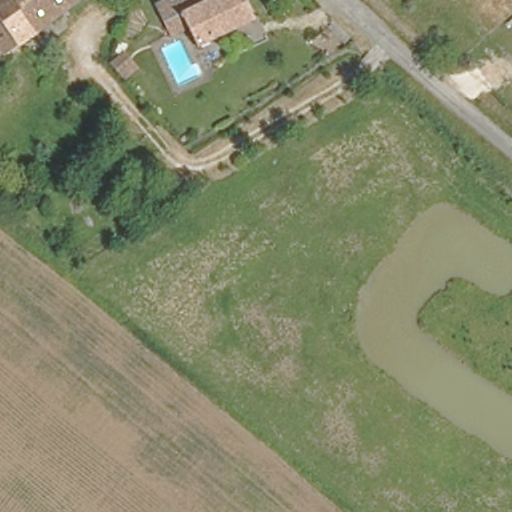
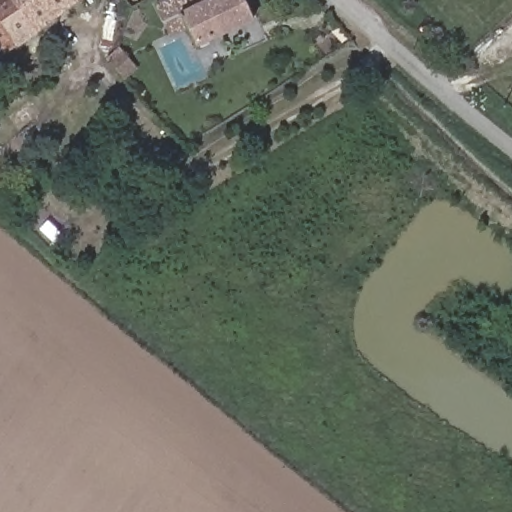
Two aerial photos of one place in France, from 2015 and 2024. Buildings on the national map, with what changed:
unchanged [(0,59),(0,0),(78,0),(33,34),(0,59)]
unchanged [(189,20),(171,28),(157,0),(244,0),(251,14),(198,39),(189,20)]

